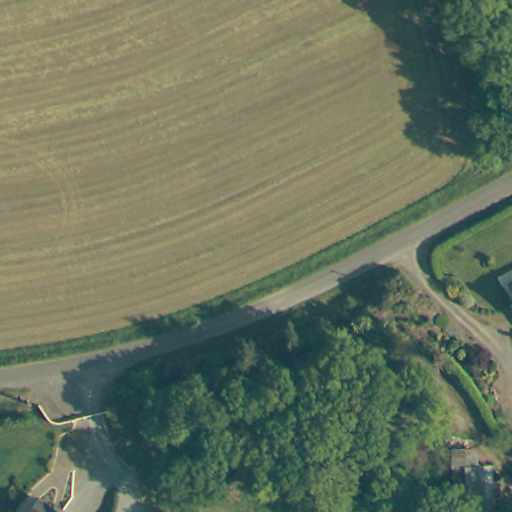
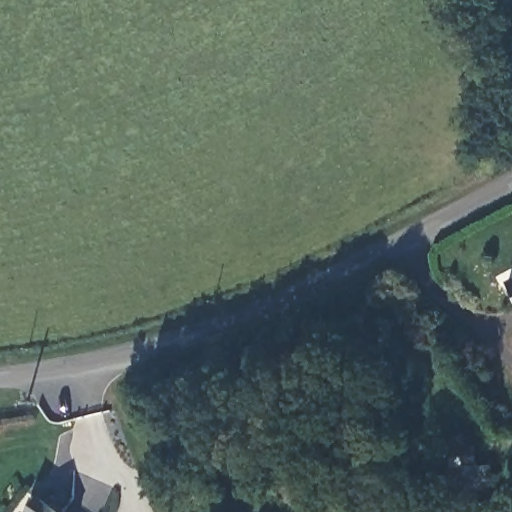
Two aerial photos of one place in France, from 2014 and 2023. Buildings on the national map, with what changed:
unchanged [(512,285),(512,300),(505,288),(512,285)]
unchanged [(45,494),(65,512),(32,512),(33,511),(30,508),(45,494)]

